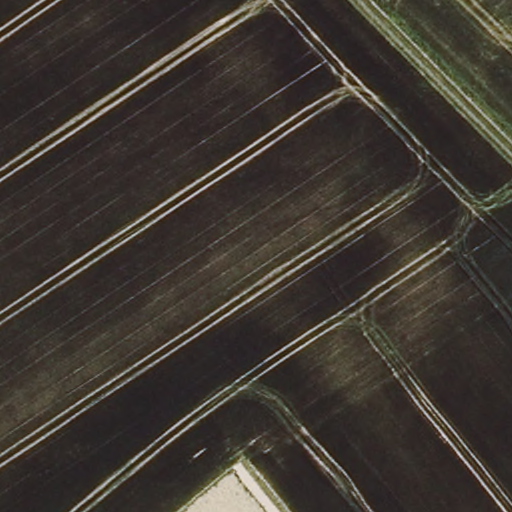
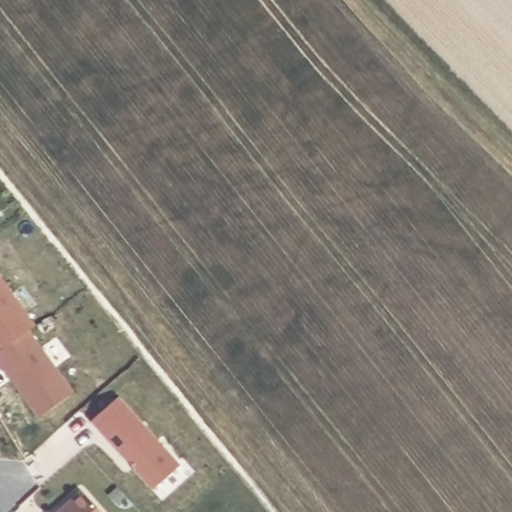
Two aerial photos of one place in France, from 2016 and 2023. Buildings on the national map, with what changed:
new [(0,350),(0,276),(35,325),(28,330),(0,350)]
new [(38,418),(5,370),(3,371),(0,368),(0,350),(28,330),(73,392),(38,418)]
new [(151,490),(90,421),(118,396),(178,463),(151,490)]
new [(81,489),(101,512),(55,512),(81,489)]

